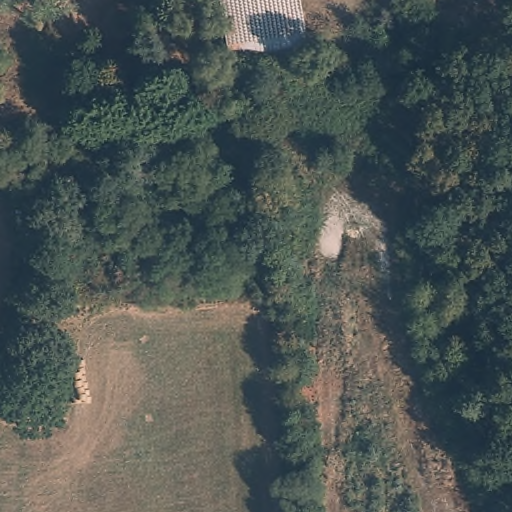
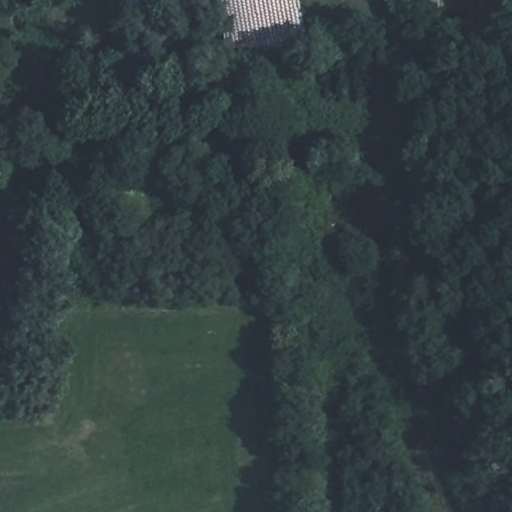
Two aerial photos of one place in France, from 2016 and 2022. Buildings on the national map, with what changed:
unchanged [(304,39),(226,55),(217,0),(297,0),(304,39)]

